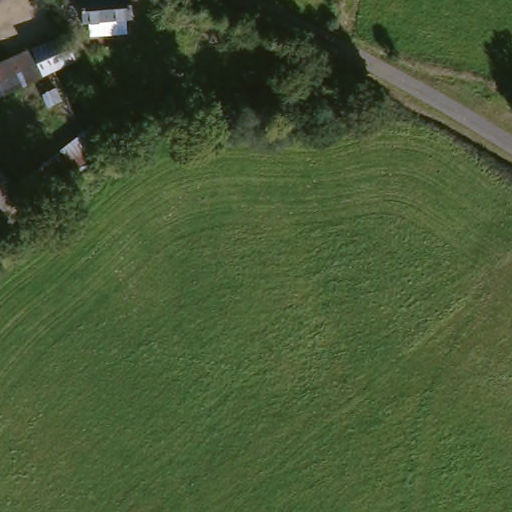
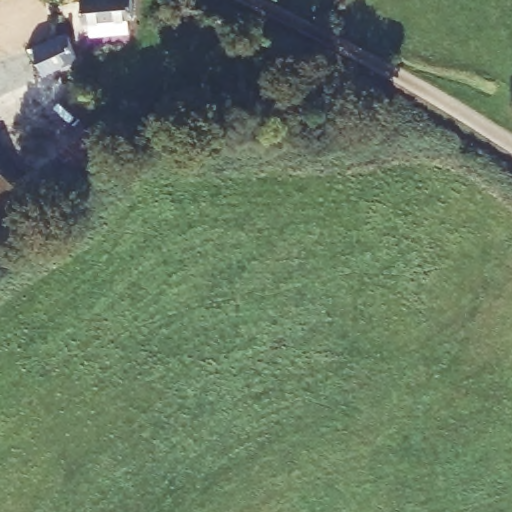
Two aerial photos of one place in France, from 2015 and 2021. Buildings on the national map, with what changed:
unchanged [(111,31),(111,36),(101,35),(101,30),(81,29),(84,0),(129,0),(126,32),(111,31)]
unchanged [(60,47),(68,72),(0,97),(0,68),(60,47)]
unchanged [(23,180),(89,122),(106,147),(0,241),(0,155),(23,180)]

